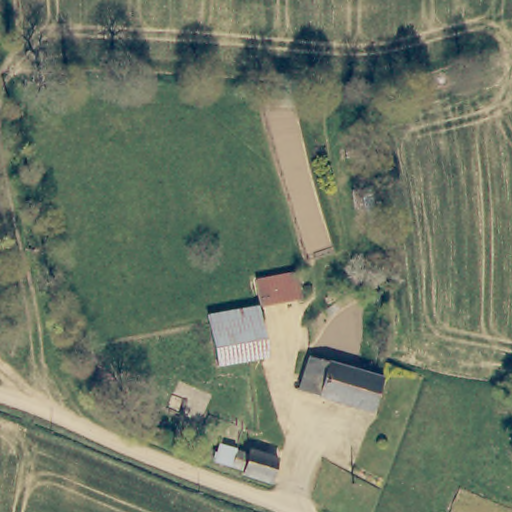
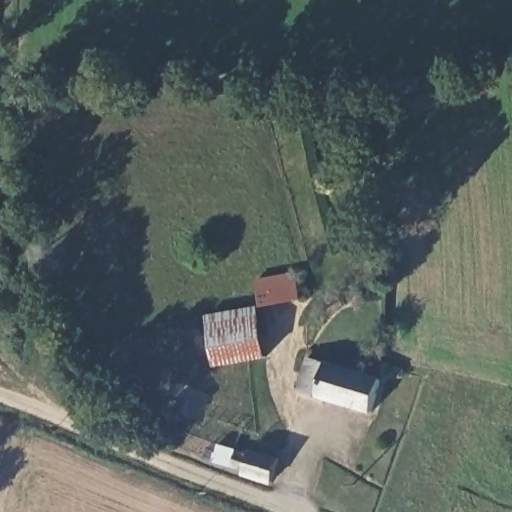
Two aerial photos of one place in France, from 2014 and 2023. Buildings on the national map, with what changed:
unchanged [(258,283),(293,272),(302,298),(266,312),(258,283)]
unchanged [(255,308),(263,355),(215,364),(204,319),(255,308)]
unchanged [(306,357),(317,360),(377,374),(381,375),(370,414),(296,395),(306,357)]
unchanged [(235,472),(236,468),(226,461),(208,455),(213,441),(232,447),(237,450),(239,445),(276,459),(266,483),(235,472)]

